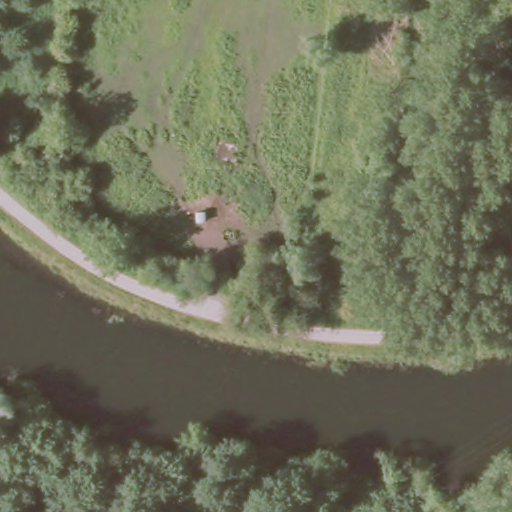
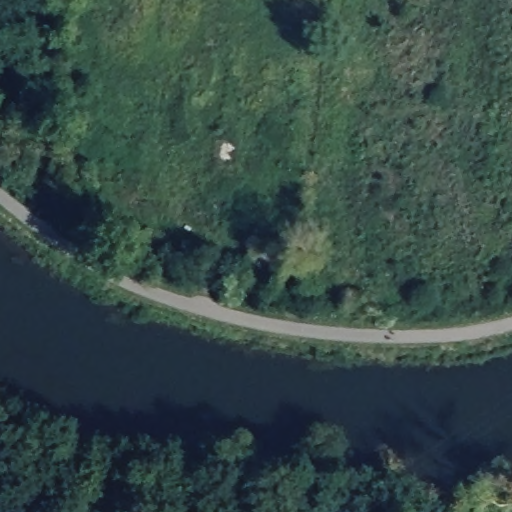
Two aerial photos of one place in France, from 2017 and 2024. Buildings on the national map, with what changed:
unchanged [(0,497),(0,450),(15,455),(0,497)]
unchanged [(64,493),(79,468),(104,478),(90,507),(64,493)]

